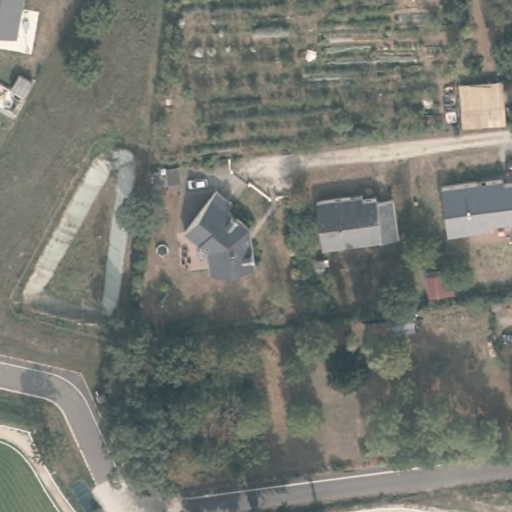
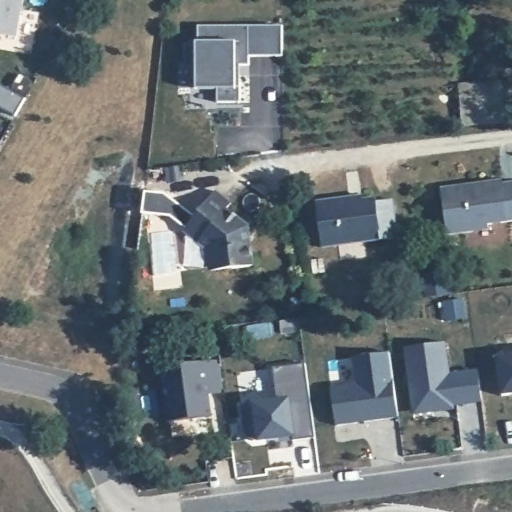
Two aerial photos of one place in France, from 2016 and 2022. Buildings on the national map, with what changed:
unchanged [(18,34),(0,31),(0,0),(24,0),(18,34)]
new [(217,104),(216,90),(196,90),(196,42),(197,26),(283,26),(282,57),(249,57),(249,66),(236,66),(236,80),(240,80),(240,103),(217,104)]
unchanged [(471,84),(509,81),(512,111),(512,123),(473,127),(471,84)]
unchanged [(505,185),(512,184),(512,222),(491,225),(491,232),(447,237),(441,190),(505,180),(505,185)]
unchanged [(377,202),(394,200),(399,238),(323,247),(317,201),(350,197),(362,195),(363,199),(376,197),(377,202)]
unchanged [(213,196),(229,208),(224,214),(246,231),(250,271),(228,275),(224,272),(206,273),(204,254),(181,236),(213,196)]
new [(413,414),(404,351),(444,346),(449,378),(478,374),(482,404),(443,409),(434,411),(413,414)]
new [(360,383),(356,357),(393,352),(401,416),(340,425),(334,387),(360,383)]
new [(512,356),(512,395),(501,396),(496,358),(512,356)]
new [(219,360),(221,379),(207,382),(212,417),(169,423),(162,369),(219,360)]
new [(280,401),(275,368),(308,364),(318,437),(296,441),(295,436),(257,441),(247,434),(243,406),(280,401)]

